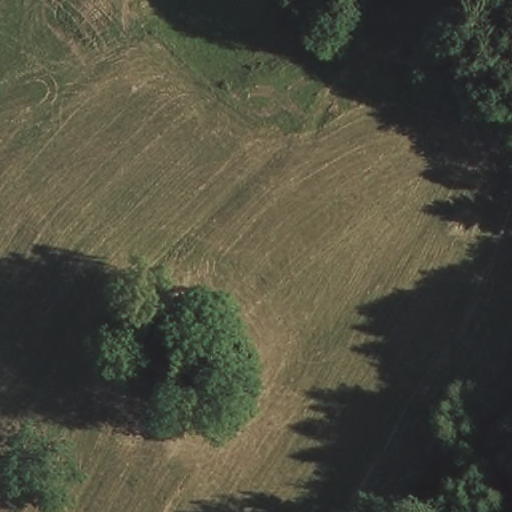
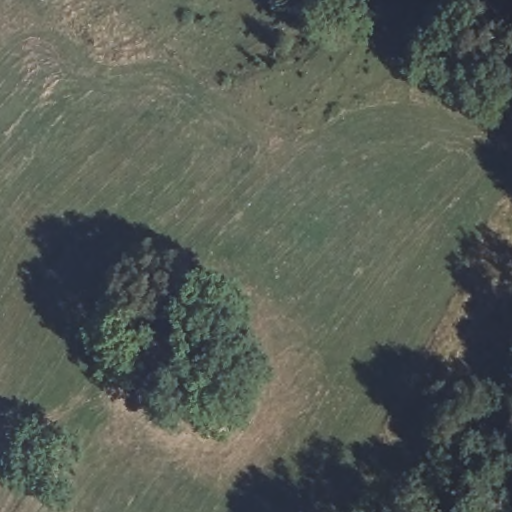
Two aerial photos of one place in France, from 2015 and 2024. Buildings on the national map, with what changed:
unchanged [(183,335),(212,359),(186,390),(157,366),(183,335)]

